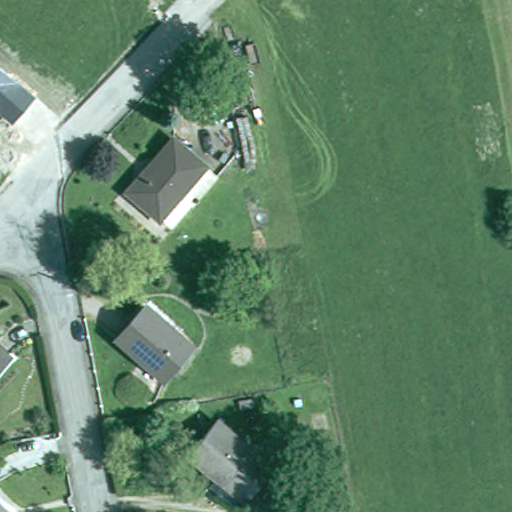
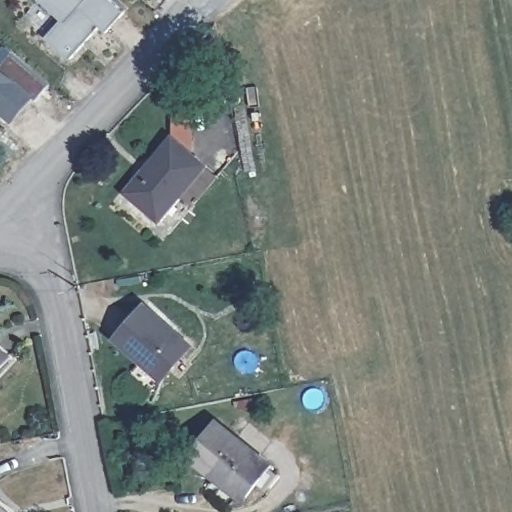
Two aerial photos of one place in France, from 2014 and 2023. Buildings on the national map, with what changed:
new [(124,11),(106,32),(100,26),(70,59),(45,37),(60,19),(38,0),(112,0),(124,11)]
unchanged [(12,123),(0,113),(0,68),(35,96),(12,123)]
unchanged [(173,138),(217,176),(192,206),(179,194),(158,218),(127,192),(173,138)]
unchanged [(145,305),(191,346),(165,377),(117,337),(145,305)]
unchanged [(0,366),(0,349),(8,357),(0,366)]
unchanged [(217,477),(188,455),(217,420),(272,463),(248,495),(245,498),(217,477)]
unchanged [(0,512),(0,506),(7,512),(0,512)]

